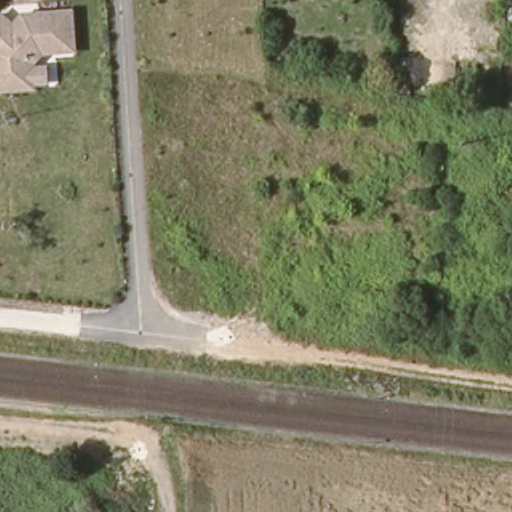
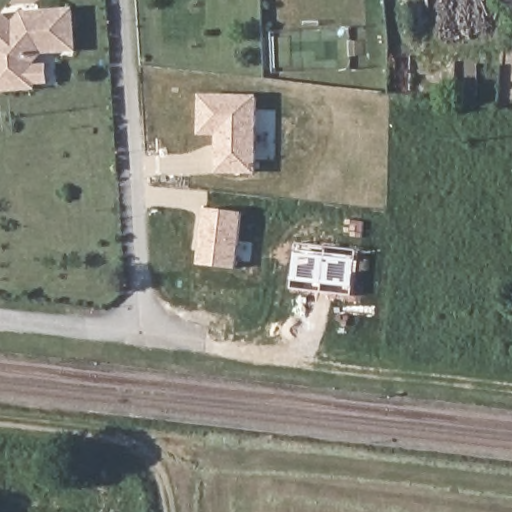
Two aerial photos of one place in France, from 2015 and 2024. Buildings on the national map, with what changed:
unchanged [(33,83),(33,86),(0,88),(0,14),(8,21),(19,20),(18,11),(69,7),(72,47),(38,50),(32,60),(32,62),(49,61),(50,82),(33,83)]
new [(215,174),(216,136),(199,136),(200,95),(258,97),(258,175),(215,174)]
new [(237,269),(198,266),(206,209),(244,212),(237,269)]
new [(353,296),(291,290),(297,243),(359,250),(353,296)]

